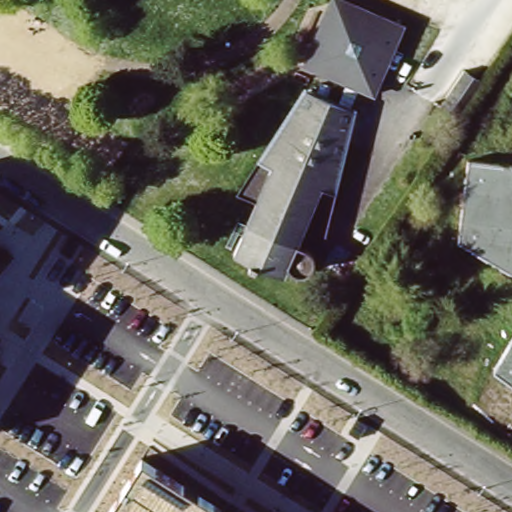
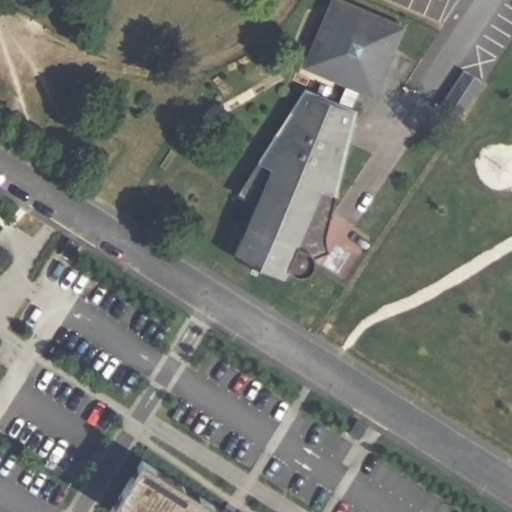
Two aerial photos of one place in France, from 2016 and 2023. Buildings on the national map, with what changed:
unchanged [(399,24),(369,94),(302,63),(326,0),(337,0),(399,24)]
unchanged [(454,117),(435,105),(458,71),(476,84),(454,117)]
unchanged [(320,242),(322,251),(309,258),(309,270),(304,276),(293,277),(284,269),(281,277),(254,266),(252,270),(241,265),(243,261),(230,256),(253,201),(236,195),(238,191),(241,193),(246,177),(249,179),(256,162),(259,163),(266,146),(269,147),(275,132),(279,133),(284,119),(292,121),(303,94),(348,111),(336,140),(341,142),(334,158),(338,159),(331,177),(334,178),(326,195),(329,195),(323,210),(326,211),(318,230),(323,230),(320,242)]
demolished [(457,242),(467,161),(512,167),(512,272),(457,242)]
demolished [(512,337),(512,378),(493,367),(512,337)]
unchanged [(121,512),(116,510),(147,459),(235,512),(121,512)]

